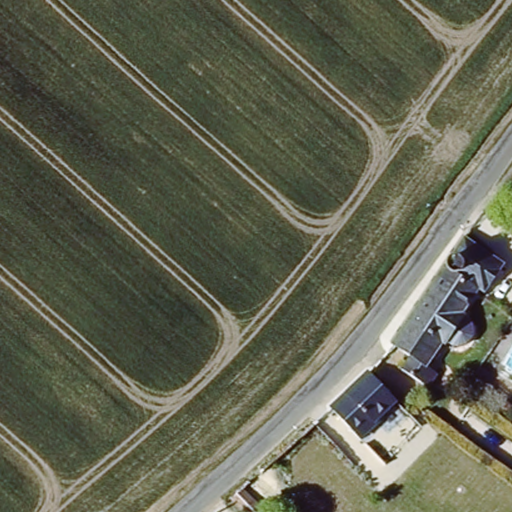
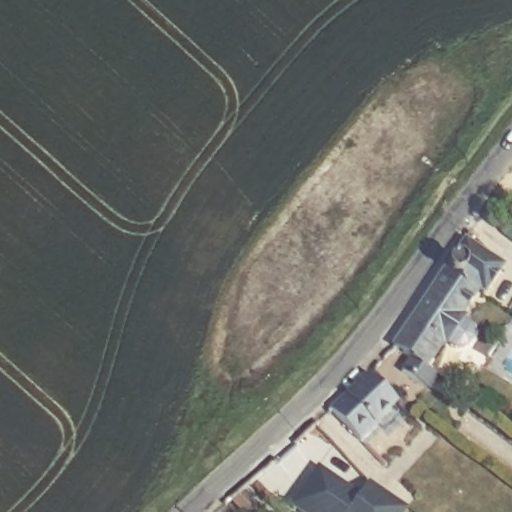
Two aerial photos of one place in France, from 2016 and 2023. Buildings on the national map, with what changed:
unchanged [(445,274),(445,270),(448,265),(451,262),(455,261),(459,262),(462,265),(463,269),(462,275),(459,279),(455,282),(473,295),(460,315),(465,319),(445,349),(440,345),(425,369),(390,345),(441,272),(445,274)]
unchanged [(403,401),(377,431),(346,394),(371,370),(403,401)]
new [(313,464),(329,476),(331,473),(349,486),(348,490),(353,493),(365,476),(404,503),(398,512),(307,512),(288,499),(313,464)]
unchanged [(261,508),(258,512),(245,512),(229,495),(239,486),(261,508)]

